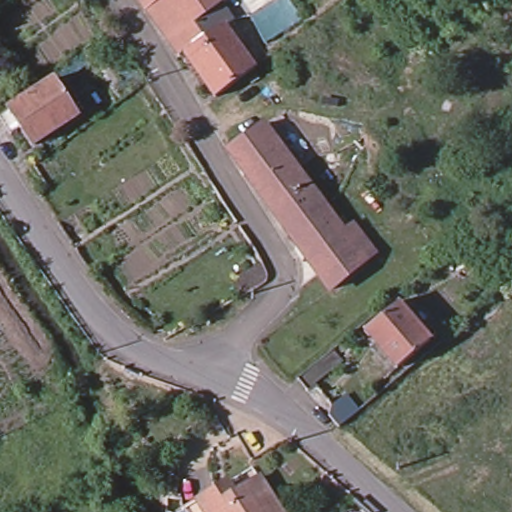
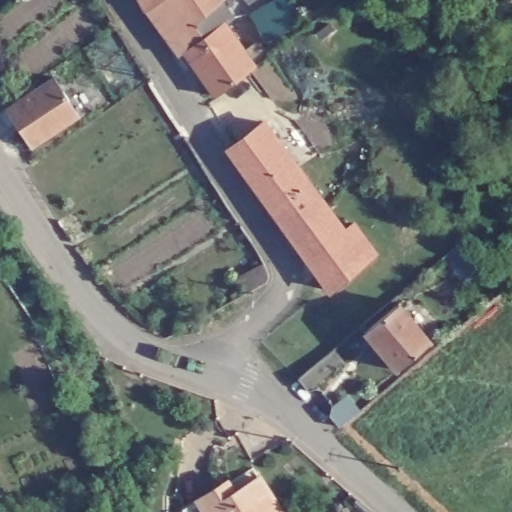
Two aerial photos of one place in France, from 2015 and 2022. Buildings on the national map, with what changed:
unchanged [(143,0),(152,0),(146,5),(143,0)]
unchanged [(183,56),(179,50),(169,36),(169,37),(168,36),(146,5),(152,0),(268,0),(246,14),(229,24),(226,19),(225,17),(218,23),(221,29),(251,65),(211,95),(183,56)]
unchanged [(294,19),(262,39),(246,14),(268,0),(283,0),(294,19)]
unchanged [(0,114),(6,109),(14,103),(15,104),(53,77),(78,113),(32,145),(18,125),(8,131),(0,119),(0,114)]
unchanged [(259,120),(301,177),(266,204),(223,145),(228,142),(259,120)]
unchanged [(338,227),(301,254),(266,204),(301,177),(338,227)]
unchanged [(338,227),(348,220),(369,250),(324,284),(314,271),(301,254),(338,227)]
unchanged [(268,280),(266,283),(259,288),(254,292),(246,296),(236,280),(263,262),(265,266),(266,270),(268,273),(268,276),(269,278),(268,280)]
unchanged [(392,372),(360,332),(395,305),(428,343),(392,372)]
unchanged [(326,372),(301,394),(291,383),(316,361),(326,372)]
unchanged [(326,419),(346,400),(358,410),(337,429),(326,419)]
unchanged [(193,495),(211,483),(223,476),(231,489),(255,473),(279,512),(184,512),(179,503),(193,495)]

